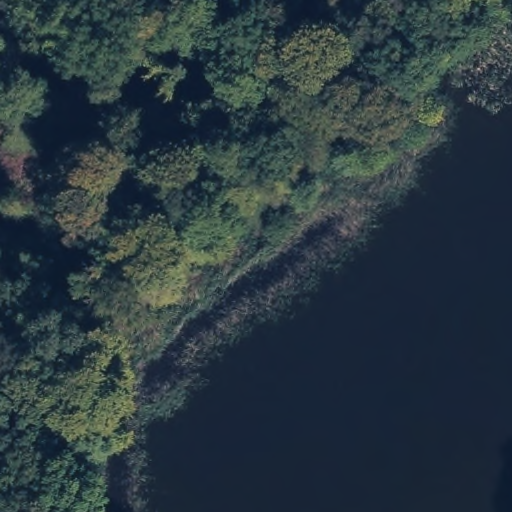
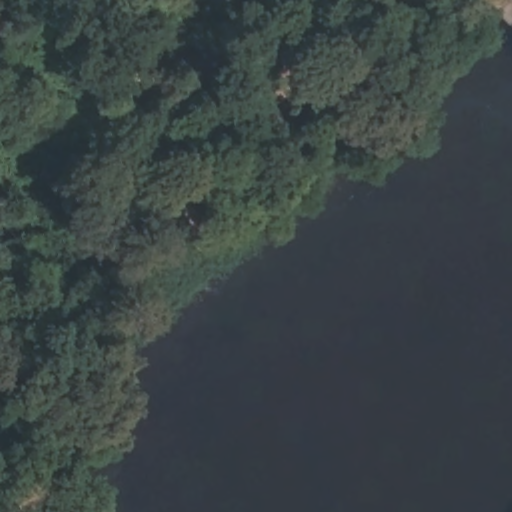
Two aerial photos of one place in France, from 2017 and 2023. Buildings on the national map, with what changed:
unchanged [(509,6),(512,2),(512,10),(509,6)]

